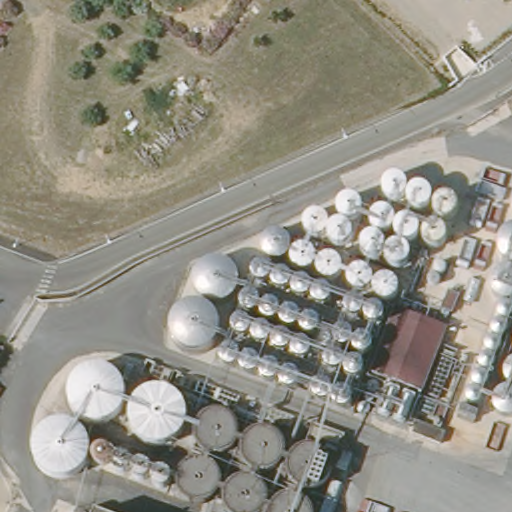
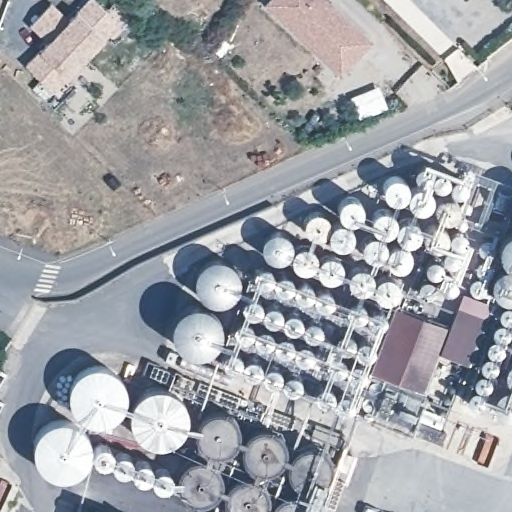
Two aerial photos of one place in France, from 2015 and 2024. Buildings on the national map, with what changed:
new [(30,25),(50,3),(68,20),(87,0),(95,0),(119,22),(55,92),(27,67),(48,42),(30,25)]
new [(315,55),(262,8),(269,0),(321,0),(368,44),(357,57),(338,77),(315,55)]
unchanged [(508,418),(478,406),(471,403),(468,398),(468,392),(499,304),(456,288),(451,291),(422,297),(399,291),(437,191),(413,181),(422,163),(448,171),(512,191),(512,418),(508,418)]
unchanged [(228,365),(175,346),(205,253),(253,269),(265,232),(393,173),(437,191),(355,411),(228,365)]
new [(442,354),(450,327),(459,308),(485,319),(467,363),(442,354)]
unchanged [(429,395),(377,377),(402,311),(450,327),(429,395)]
unchanged [(82,375),(87,371),(93,367),(103,366),(113,367),(118,370),(125,376),(130,384),(132,394),(130,404),(126,411),(122,415),(115,421),(106,423),(96,422),(86,418),(79,410),(74,399),(74,391),(77,381),(82,375)]
unchanged [(184,394),(190,402),(192,412),(192,420),(187,429),(178,438),(170,441),(160,442),(151,439),(142,432),(137,422),(135,412),(137,404),(140,395),(147,390),(152,387),(158,385),(167,385),(177,389),(184,394)]
unchanged [(315,441),(324,442),(330,446),(335,452),(337,459),(336,466),(333,472),(327,478),(322,480),(317,480),(310,499),(316,505),(318,512),(269,512),(262,509),(258,512),(233,512),(229,507),(227,499),(227,494),(220,492),(217,497),(210,501),(202,501),(193,499),(186,492),(183,483),(185,476),(187,468),(192,464),(195,463),(204,437),(202,432),(203,422),(208,415),(215,410),(225,408),(233,411),(238,416),(241,423),(242,428),(249,430),(255,425),(262,423),(271,423),(280,428),(284,436),(285,443),(300,449),(307,444),(315,441)]
unchanged [(45,425),(50,420),(59,414),(68,413),(77,414),(83,418),(90,425),(95,434),(97,442),(95,450),(92,457),(87,464),(79,469),(72,471),(62,471),(55,468),(47,463),(43,457),(40,450),(40,442),(41,433),(45,425)]
unchanged [(172,478),(171,481),(167,486),(164,487),(158,487),(102,468),(97,461),(97,455),(98,451),(102,448),(104,447),(112,449),(170,473),(172,478)]

